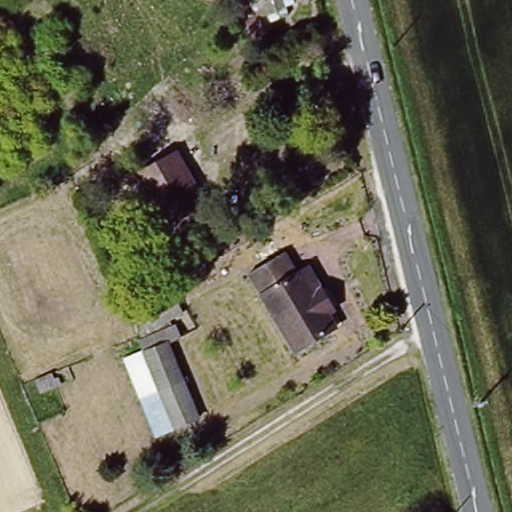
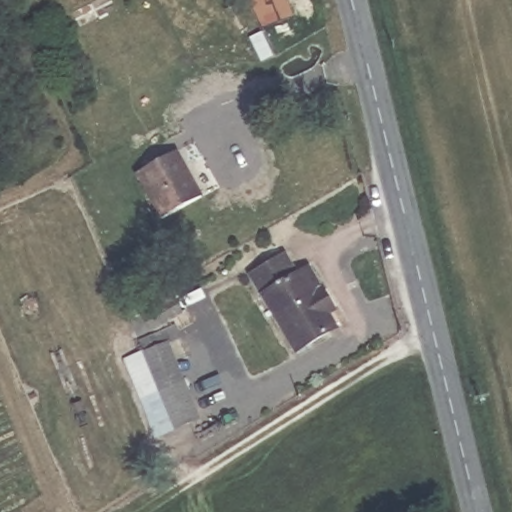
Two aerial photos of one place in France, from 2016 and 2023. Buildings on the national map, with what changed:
unchanged [(300,5),(271,20),(261,0),(298,0),(300,5)]
unchanged [(172,155),(196,199),(158,220),(133,176),(172,155)]
unchanged [(289,281),(302,274),(315,295),(309,299),(320,317),(312,323),(320,338),(289,355),(245,278),(277,260),(289,281)]
unchanged [(135,301),(125,306),(114,279),(124,275),(135,301)]
unchanged [(145,354),(139,340),(177,326),(185,340),(170,347),(201,421),(155,437),(125,361),(145,354)]

